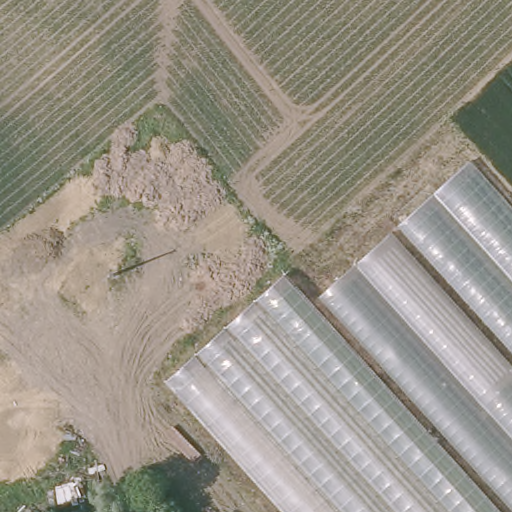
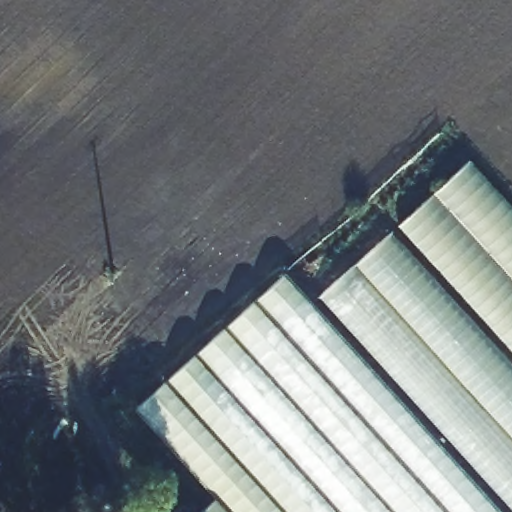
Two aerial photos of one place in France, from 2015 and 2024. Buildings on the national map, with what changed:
unchanged [(472,160),(512,205),(512,352),(399,226),(472,160)]
unchanged [(391,234),(512,367),(512,512),(320,297),(391,234)]
unchanged [(285,275),(501,512),(284,512),(166,382),(285,275)]
new [(136,409),(166,382),(284,512),(200,512),(216,497),(136,409)]

